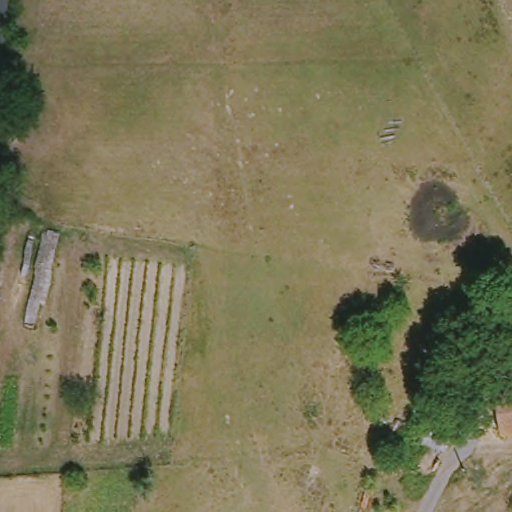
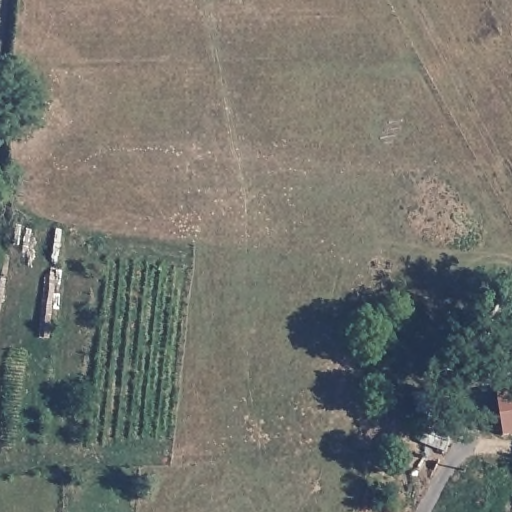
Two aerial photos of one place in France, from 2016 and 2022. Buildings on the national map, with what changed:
unchanged [(504,431),(498,393),(512,390),(512,429),(504,431)]

